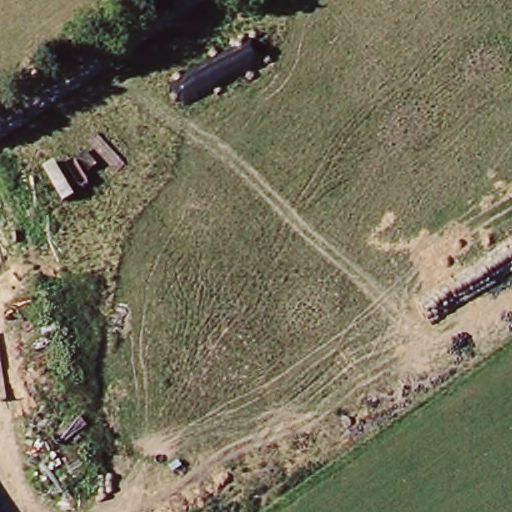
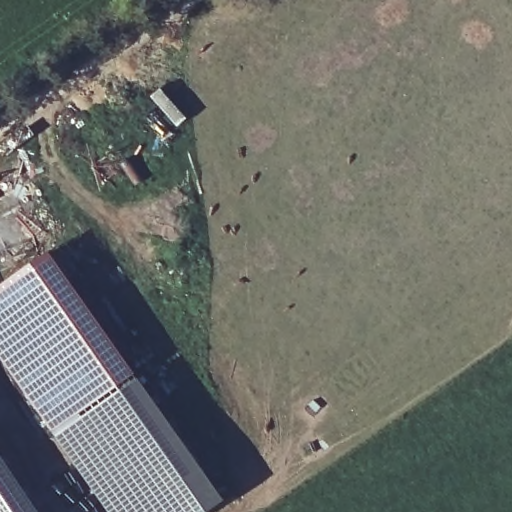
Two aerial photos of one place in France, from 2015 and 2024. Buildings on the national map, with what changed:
new [(135,372),(54,430),(0,354),(0,286),(50,251),(135,372)]
new [(225,500),(207,512),(110,512),(57,435),(139,377),(225,500)]
unchanged [(0,512),(0,511),(1,512),(0,512)]

